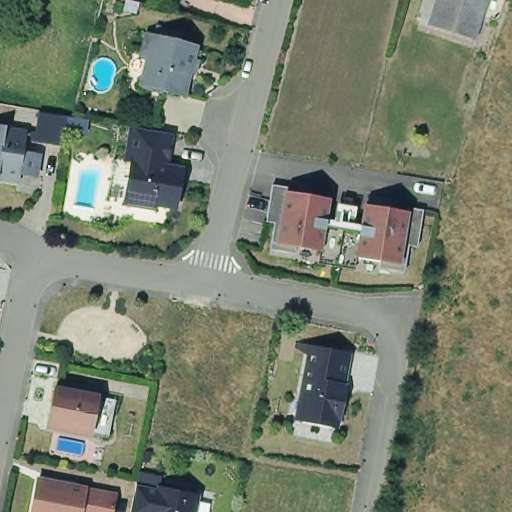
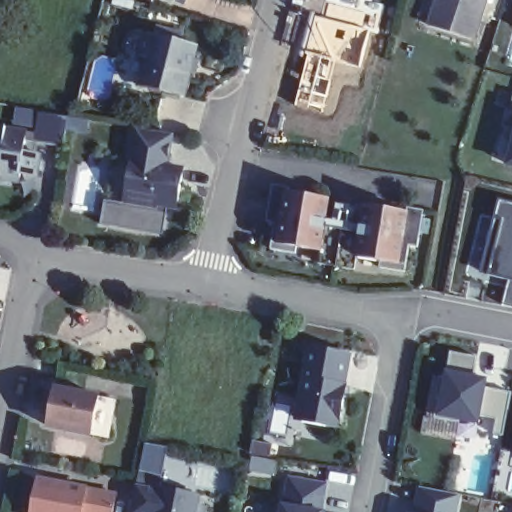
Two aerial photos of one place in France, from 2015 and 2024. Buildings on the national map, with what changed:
new [(320,12),(324,0),(366,13),(362,27),(370,28),(359,68),(335,62),(306,54),(302,52),(315,10),(320,12)]
unchanged [(463,38),(422,25),(430,0),(475,0),(463,38)]
unchanged [(140,81),(145,60),(139,58),(145,35),(153,37),(155,28),(180,35),(178,44),(194,48),(181,99),(160,92),(138,87),(140,81)]
new [(306,54),(335,62),(329,84),(326,83),(322,97),(314,95),(310,110),(293,105),(306,54)]
new [(507,107),(510,94),(512,94),(512,107),(507,107)]
unchanged [(67,117),(64,137),(62,145),(34,141),(38,112),(67,117)]
new [(501,166),(512,124),(512,168),(501,166)]
unchanged [(25,144),(22,144),(21,152),(38,155),(35,177),(20,175),(19,182),(0,179),(0,127),(27,131),(25,144)]
unchanged [(171,135),(175,135),(170,160),(167,159),(166,166),(185,170),(177,209),(158,206),(157,210),(126,204),(133,162),(127,161),(133,127),(171,135)]
unchanged [(358,222),(362,202),(405,210),(405,205),(421,207),(414,243),(405,242),(400,267),(375,263),(376,257),(352,252),(350,265),(313,259),(316,247),(291,242),(290,249),(265,245),(270,219),(262,217),(270,181),(285,184),(285,189),(326,196),(321,222),(335,224),(341,195),(350,196),(343,226),(357,228),(358,222)]
new [(501,306),(507,278),(480,267),(496,198),(512,202),(512,308),(501,306)]
unchanged [(343,400),(340,418),(336,418),(334,427),(300,421),(304,400),(299,398),(309,347),(348,355),(342,387),(345,388),(343,400)]
new [(482,389),(508,393),(502,428),(433,417),(437,370),(485,378),(482,389)]
unchanged [(107,438),(91,435),(47,427),(55,388),(98,397),(115,400),(107,438)]
new [(275,512),(281,476),(325,482),(320,512),(275,512)]
unchanged [(31,512),(37,480),(86,490),(115,495),(112,512),(31,512)]
unchanged [(157,491),(158,487),(197,495),(194,512),(130,512),(135,486),(157,491)]
new [(412,512),(417,486),(458,494),(455,512),(412,512)]

